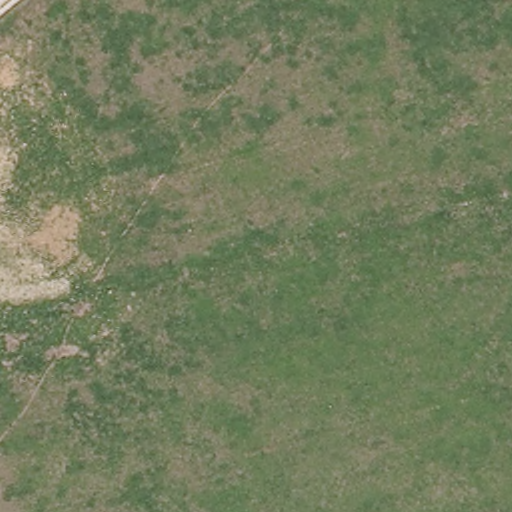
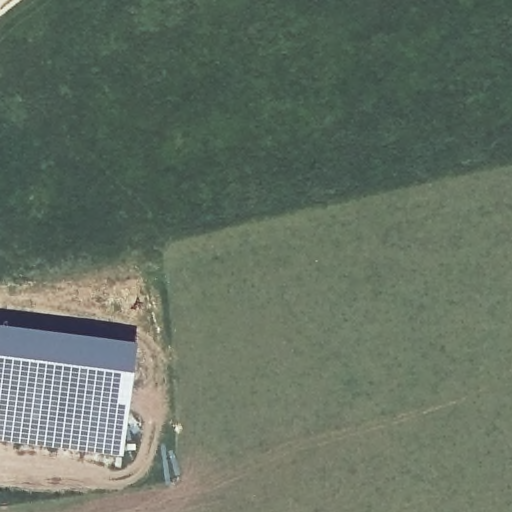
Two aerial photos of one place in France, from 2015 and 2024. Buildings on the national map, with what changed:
new [(123,462),(0,447),(0,334),(136,351),(123,462)]

